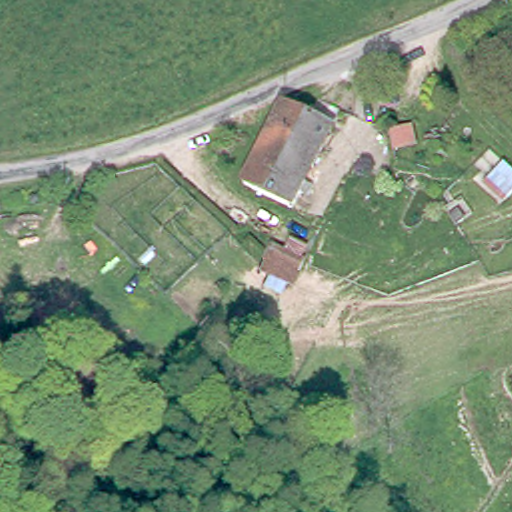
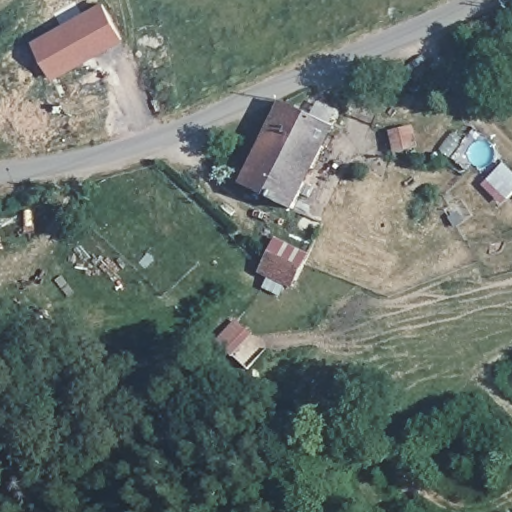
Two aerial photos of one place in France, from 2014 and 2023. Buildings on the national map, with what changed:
new [(54,77),(35,43),(102,5),(121,39),(54,77)]
unchanged [(300,194),(292,211),(240,185),(277,105),(280,104),(307,116),(315,99),(337,110),(330,125),(305,184),(313,188),(308,199),(300,194)]
new [(392,134),(413,129),(417,148),(395,154),(392,134)]
unchanged [(506,198),(490,180),(505,165),(512,171),(512,192),(506,198)]
unchanged [(265,267),(277,243),(310,257),(297,283),(288,279),(265,267)]
unchanged [(242,337),(252,344),(238,369),(237,371),(225,364),(229,358),(242,337)]

